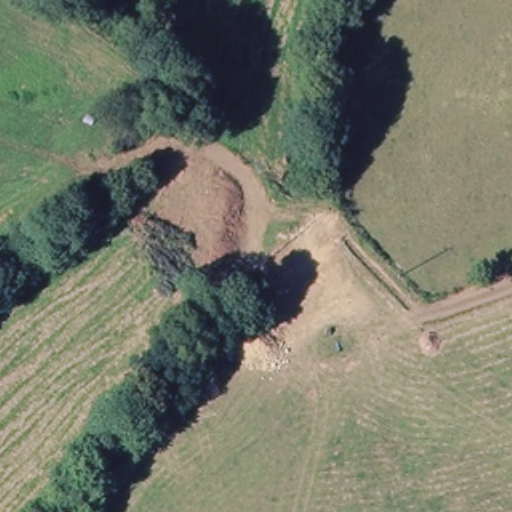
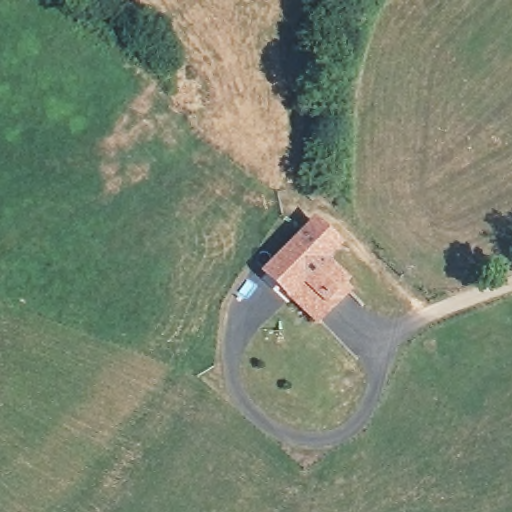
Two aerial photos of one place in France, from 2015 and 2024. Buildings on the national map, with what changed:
new [(342,248),(327,262),(348,281),(345,285),(352,291),(316,328),(257,272),(313,217),(342,248)]
demolished [(281,271),(270,257),(312,222),(331,242),(287,277),(281,271)]

